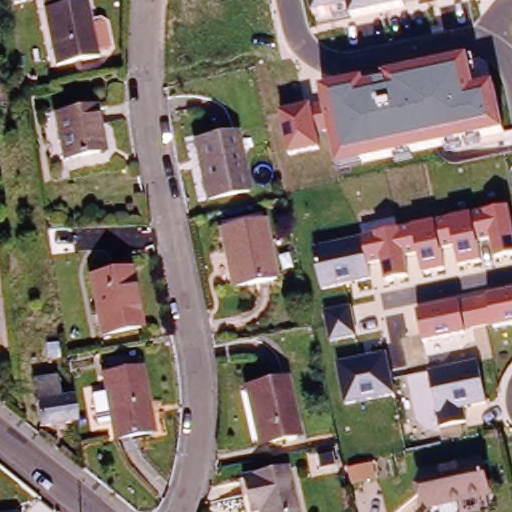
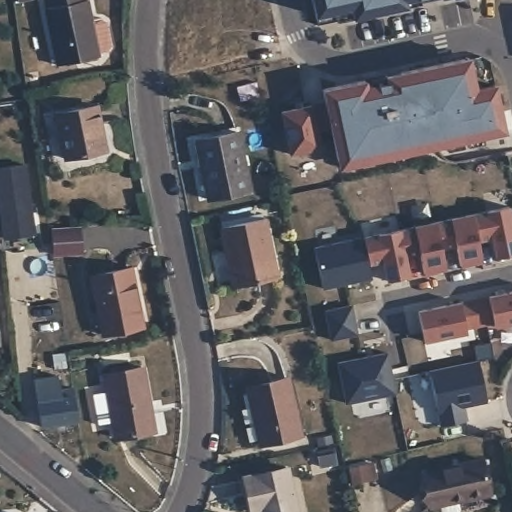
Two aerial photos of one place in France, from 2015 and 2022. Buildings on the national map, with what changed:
unchanged [(19,5),(18,0),(34,0),(34,2),(19,5)]
unchanged [(109,47),(105,53),(95,55),(96,58),(56,66),(43,0),(85,0),(89,21),(99,20),(104,23),(109,47)]
unchanged [(405,8),(352,19),(350,9),(315,16),(312,0),(417,0),(405,3),(405,8)]
unchanged [(288,155),(280,111),(323,101),(322,89),(365,80),(366,83),(384,80),(383,75),(470,56),(477,86),(495,84),(504,133),(337,167),(328,129),(317,132),(320,149),(288,155)]
unchanged [(98,151),(59,157),(52,110),(92,105),(98,151)]
unchanged [(245,191),(203,199),(192,141),(232,134),(245,191)]
new [(36,235),(6,239),(0,198),(0,169),(25,166),(36,235)]
unchanged [(512,226),(512,255),(494,259),(490,241),(477,243),(481,263),(459,267),(455,249),(443,251),(447,270),(422,275),(418,256),(407,258),(410,277),(385,283),(382,264),(368,266),(371,282),(324,290),(315,248),(508,208),(512,226)]
unchanged [(277,281),(233,289),(221,228),(263,220),(277,281)]
new [(80,230),(83,255),(55,259),(52,234),(80,230)]
unchanged [(0,254),(0,243),(1,254),(0,254)]
unchanged [(140,328),(100,335),(88,275),(127,267),(140,328)]
unchanged [(493,328),(492,324),(465,330),(466,334),(423,342),(417,311),(512,291),(512,324),(493,328)]
unchanged [(387,354),(395,395),(347,405),(337,365),(387,354)]
unchanged [(487,402),(463,407),(467,422),(440,427),(430,371),(477,361),(487,402)]
unchanged [(95,401),(108,399),(105,374),(142,368),(153,431),(115,438),(112,423),(99,425),(95,401)]
unchanged [(35,380),(58,376),(62,390),(73,388),(78,420),(42,426),(35,380)]
unchanged [(300,437),(258,445),(248,388),(289,380),(300,437)]
unchanged [(425,501),(417,472),(477,458),(485,492),(452,500),(426,506),(425,501)]
unchanged [(295,512),(260,512),(259,506),(249,508),(242,475),(285,466),(295,512)]

